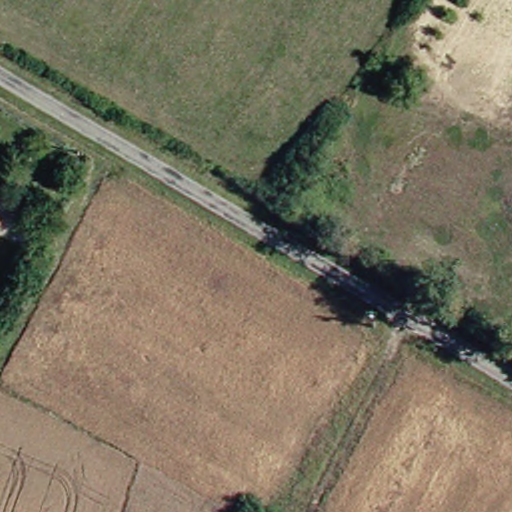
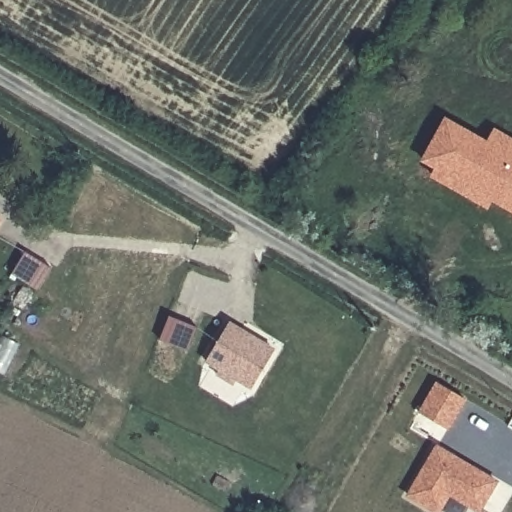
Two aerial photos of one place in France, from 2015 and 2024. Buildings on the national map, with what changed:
new [(487,141),(494,128),(512,138),(512,214),(492,203),(488,211),(430,178),(434,170),(420,162),(444,117),(487,141)]
unchanged [(251,387),(235,380),(233,383),(216,373),(219,368),(205,362),(228,321),(275,348),(251,387)]
new [(449,431),(418,413),(436,382),(467,400),(449,431)]
new [(481,512),(432,512),(405,496),(436,444),(499,482),(481,512)]

